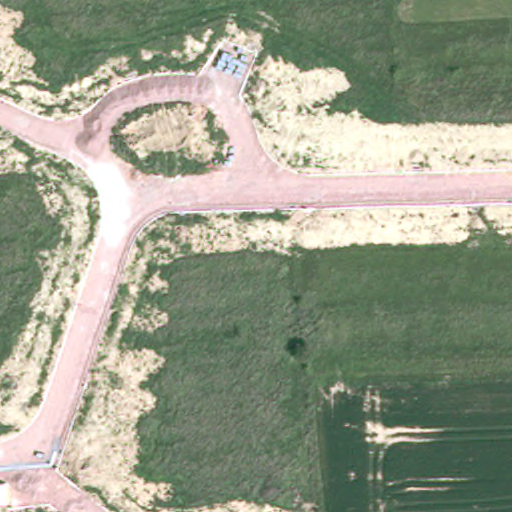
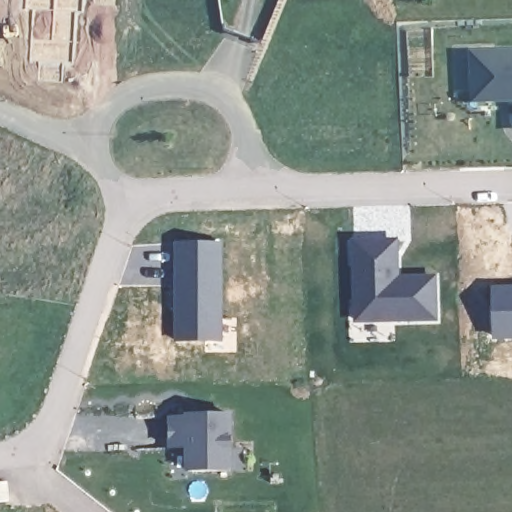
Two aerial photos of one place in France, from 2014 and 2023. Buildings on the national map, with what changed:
new [(470,102),(470,50),(512,49),(512,100),(470,102)]
new [(437,275),(438,323),(352,325),(352,240),(400,239),(400,275),(437,275)]
new [(512,287),(512,321),(497,321),(497,288),(512,287)]
new [(230,415),(232,472),(186,473),(186,448),(168,449),(168,416),(230,415)]

